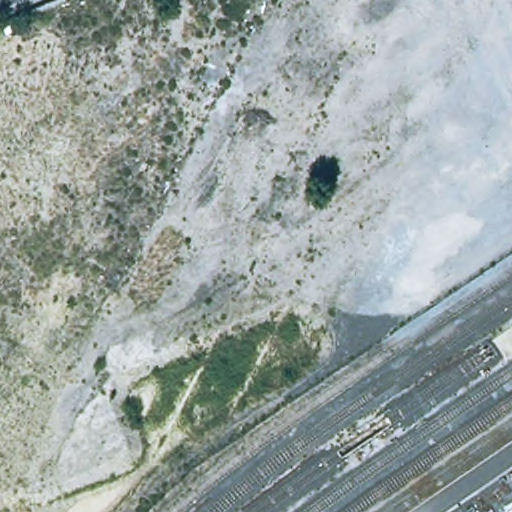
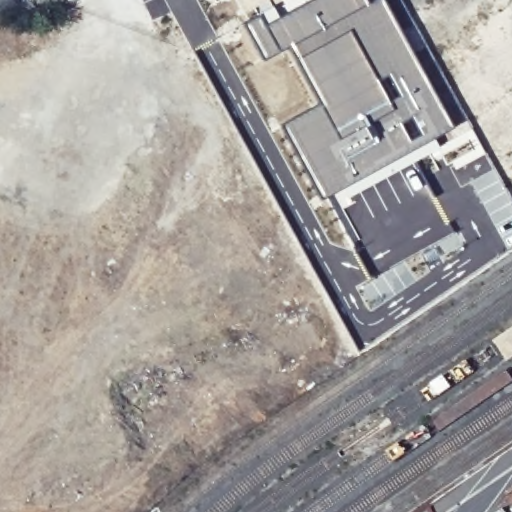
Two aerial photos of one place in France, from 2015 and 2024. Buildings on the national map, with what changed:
new [(445,119),(316,200),(271,121),(317,95),(292,42),(264,55),(246,16),(276,0),(377,0),(445,119)]

